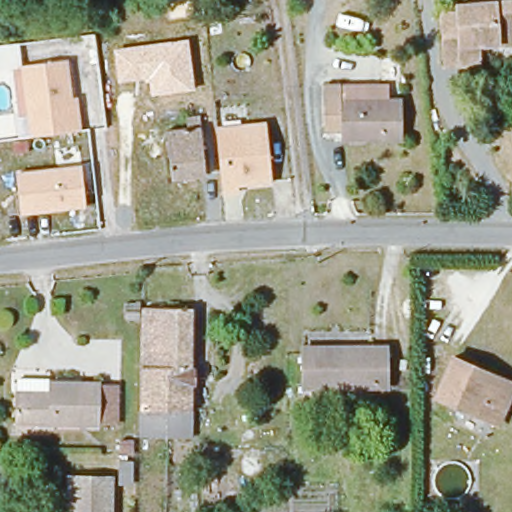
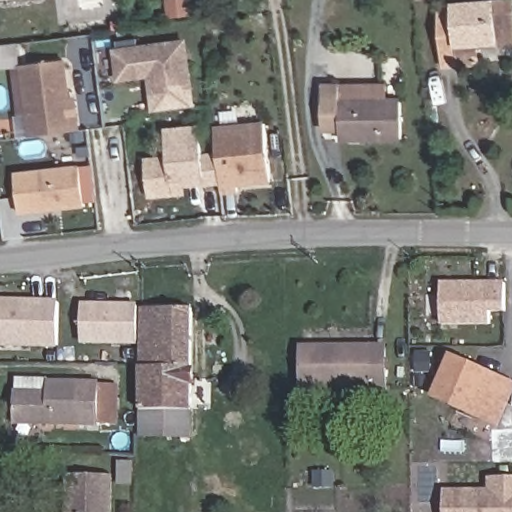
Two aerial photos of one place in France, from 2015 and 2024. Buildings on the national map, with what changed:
unchanged [(479,70),(443,73),(438,19),(456,19),(456,10),(512,6),(512,46),(477,49),(479,70)]
unchanged [(195,89),(151,94),(149,77),(118,82),(114,49),(188,39),(195,89)]
unchanged [(82,130),(31,135),(28,115),(20,115),(14,68),(0,69),(0,45),(19,43),(22,65),(67,60),(72,96),(78,96),(82,130)]
unchanged [(409,135),(389,136),(347,137),(346,128),(325,128),(325,81),(344,81),(344,99),(386,97),(410,97),(409,135)]
unchanged [(239,192),(225,194),(217,126),(266,121),(273,183),(238,187),(239,192)]
unchanged [(206,181),(174,185),(168,135),(200,132),(206,181)]
new [(171,155),(174,185),(206,181),(203,155),(220,152),(224,185),(186,189),(187,196),(149,199),(146,158),(171,155)]
unchanged [(87,206),(22,215),(17,172),(81,165),(87,206)]
new [(507,281),(507,309),(492,309),(491,322),(442,322),(442,282),(507,281)]
new [(0,348),(0,299),(59,300),(58,350),(0,348)]
new [(139,303),(139,345),(82,345),(82,303),(139,303)]
unchanged [(142,415),(144,311),(192,310),(191,413),(191,416),(142,415)]
unchanged [(361,348),(388,347),(387,390),(361,390),(346,391),(316,391),(306,391),(305,388),(305,387),(305,350),(312,350),(315,350),(345,348),(361,348)]
unchanged [(453,358),(473,368),(487,375),(512,387),(512,388),(509,394),(495,427),(487,423),(454,408),(434,399),(452,357),(453,358)]
unchanged [(107,426),(22,422),(21,392),(53,394),(52,382),(108,385),(107,426)]
unchanged [(142,415),(191,416),(190,440),(141,440),(142,415)]
unchanged [(71,478),(115,478),(115,512),(71,512),(71,478)]
new [(447,493),(480,493),(480,500),(492,500),(492,482),(512,482),(512,512),(447,512),(447,493)]
new [(492,493),(492,500),(480,500),(480,493),(492,493)]

